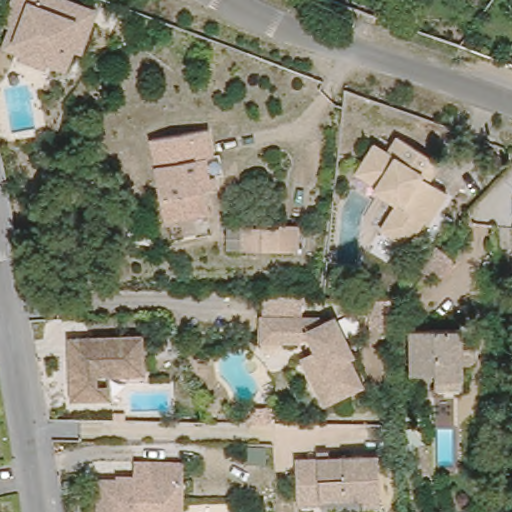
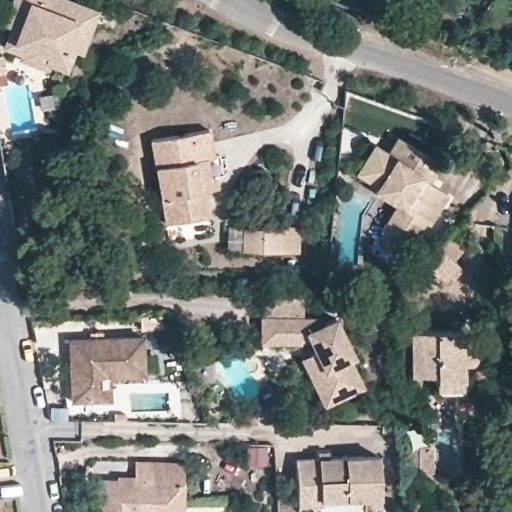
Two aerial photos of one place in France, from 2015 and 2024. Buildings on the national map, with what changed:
unchanged [(81,45),(75,63),(56,56),(54,62),(33,53),(34,48),(15,41),(22,23),(15,21),(20,8),(23,0),(85,0),(97,5),(104,7),(88,47),(81,45)]
unchanged [(205,191),(209,217),(166,224),(152,139),(209,130),(213,157),(206,158),(209,178),(216,177),(218,189),(205,191)]
unchanged [(369,186),(356,178),(358,175),(374,149),(387,157),(397,142),(439,168),(428,186),(447,198),(442,205),(428,228),(424,226),(408,252),(389,240),(381,235),(388,222),(397,209),(388,204),(374,195),(376,191),(369,186)]
unchanged [(227,232),(279,234),(279,232),(298,232),(296,258),(226,255),(227,232)]
unchanged [(437,280),(419,265),(437,245),(454,260),(437,280)]
unchanged [(315,351),(310,341),(299,341),(299,343),(261,342),(261,317),(314,318),(314,328),(334,318),(354,358),(349,360),(363,387),(325,405),(311,378),(301,358),(315,351)]
unchanged [(464,367),(458,367),(458,394),(431,394),(431,379),(406,379),(405,335),(430,335),(430,334),(457,334),(458,353),(464,353),(464,367)]
unchanged [(103,401),(77,402),(74,339),(148,336),(149,375),(114,377),(115,400),(103,401)]
unchanged [(432,472),(417,472),(417,451),(432,450),(432,472)]
unchanged [(369,507),(368,499),(326,501),(326,505),(303,506),(301,459),(323,458),(323,451),(333,451),(333,457),(384,455),(386,507),(369,507)]
unchanged [(143,481),(143,462),(188,463),(188,508),(188,512),(102,512),(103,480),(143,481)]

